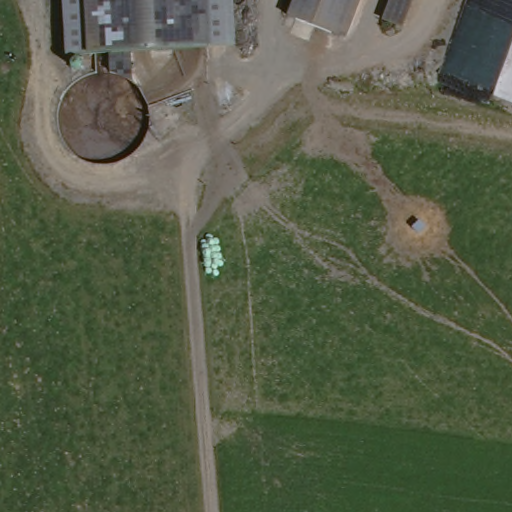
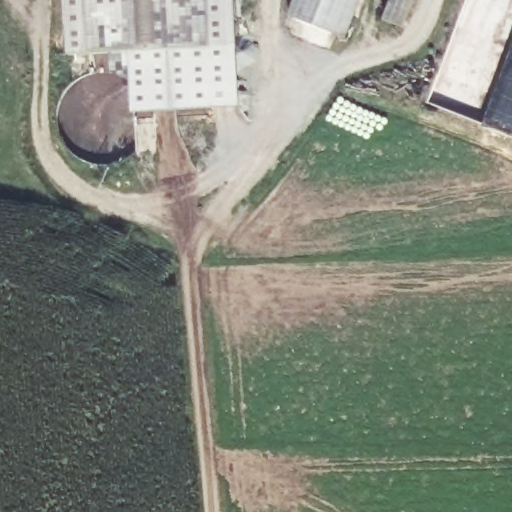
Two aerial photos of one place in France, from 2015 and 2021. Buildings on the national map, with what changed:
new [(65,51),(62,0),(92,0),(94,49),(65,51)]
unchanged [(94,49),(92,0),(210,0),(213,41),(94,49)]
new [(210,0),(235,0),(241,108),(131,114),(129,47),(213,41),(210,0)]
unchanged [(300,15),(305,0),(357,0),(346,34),(300,15)]
unchanged [(385,14),(390,0),(411,0),(404,21),(385,14)]

